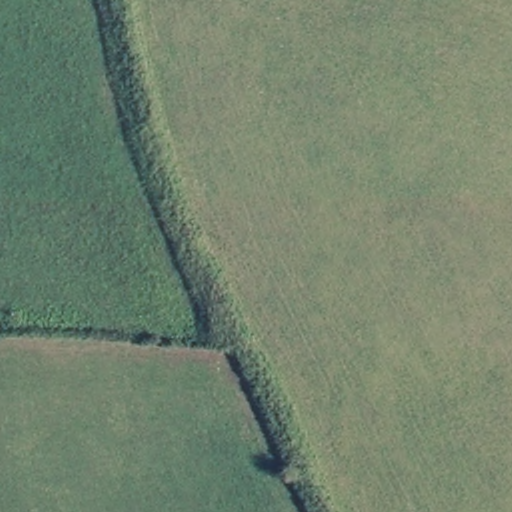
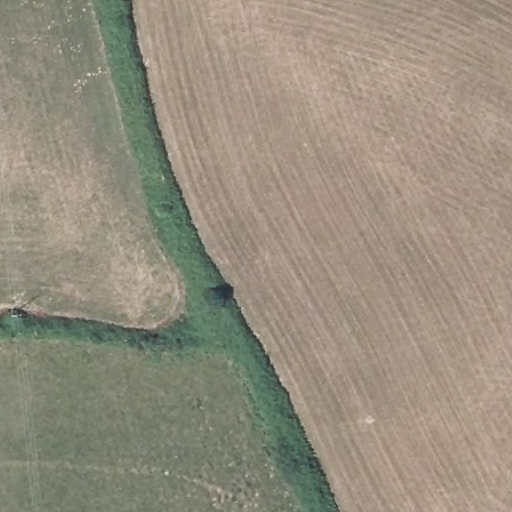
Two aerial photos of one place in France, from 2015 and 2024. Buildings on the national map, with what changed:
[]

